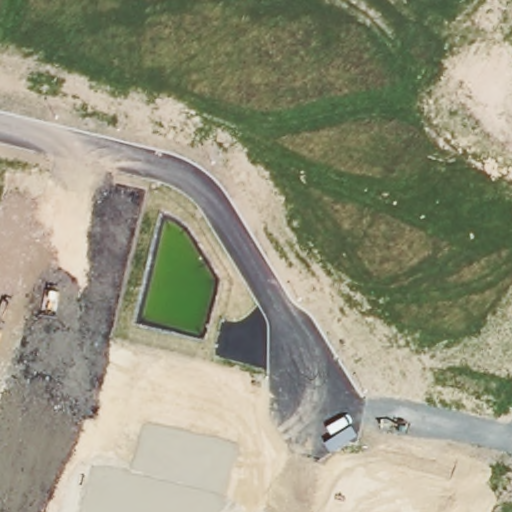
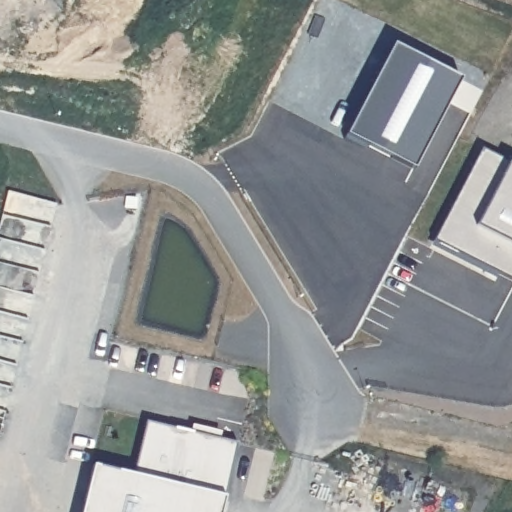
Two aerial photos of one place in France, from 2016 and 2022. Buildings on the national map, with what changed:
new [(398,40),(466,75),(419,165),(352,131),(398,40)]
new [(481,148),(508,163),(512,165),(512,279),(434,240),(481,148)]
new [(92,465),(133,475),(146,422),(190,432),(192,425),(220,432),(218,440),(234,444),(222,497),(219,512),(81,512),(92,465)]

